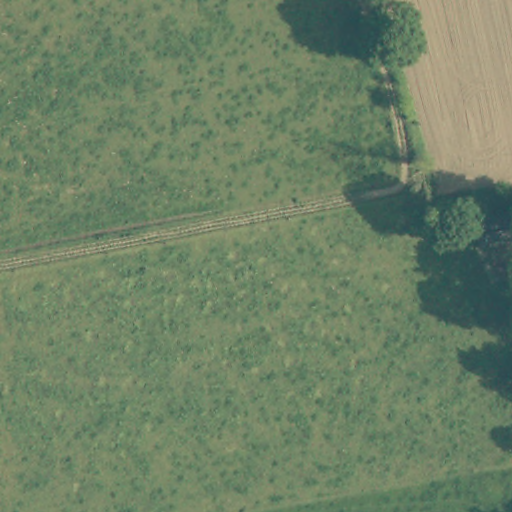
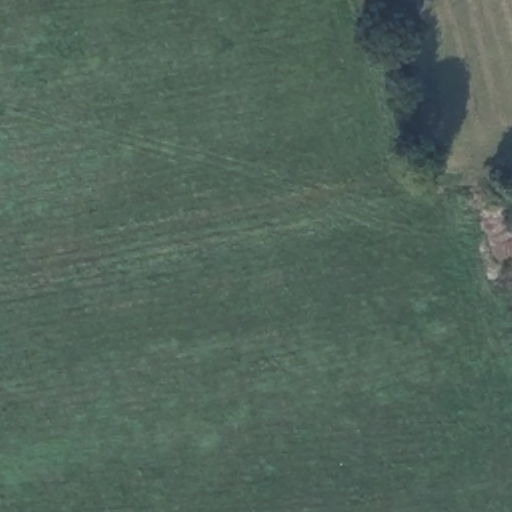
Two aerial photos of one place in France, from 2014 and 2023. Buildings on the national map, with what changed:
[]

